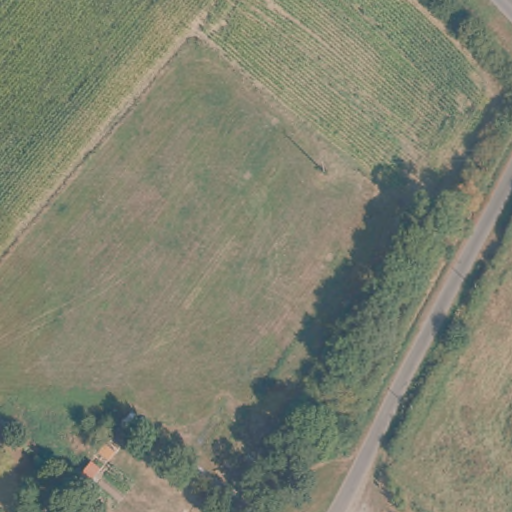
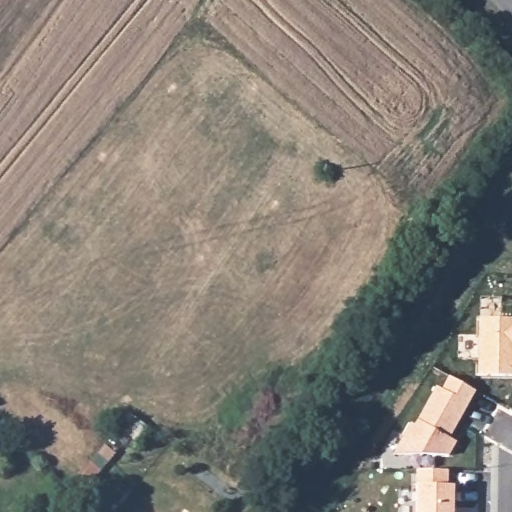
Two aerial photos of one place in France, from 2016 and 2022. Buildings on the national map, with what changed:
new [(477,376),(478,317),(512,318),(512,376),(477,376)]
new [(451,437),(457,442),(450,455),(393,453),(410,422),(414,424),(436,387),(441,390),(449,376),(476,391),(451,437)]
unchanged [(78,501),(76,499),(71,493),(90,470),(94,473),(98,477),(78,501)]
new [(448,486),(454,486),(453,512),(416,512),(417,470),(448,471),(448,486)]

